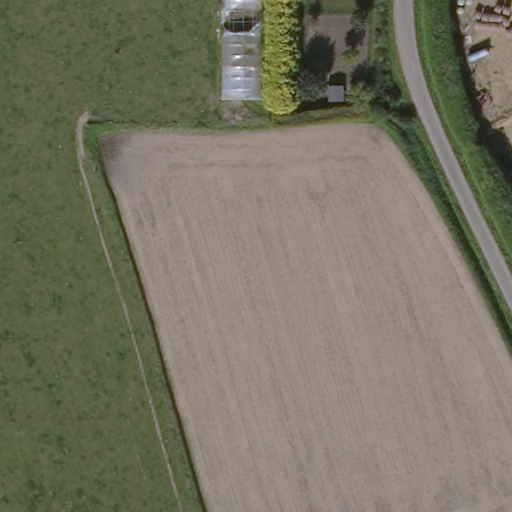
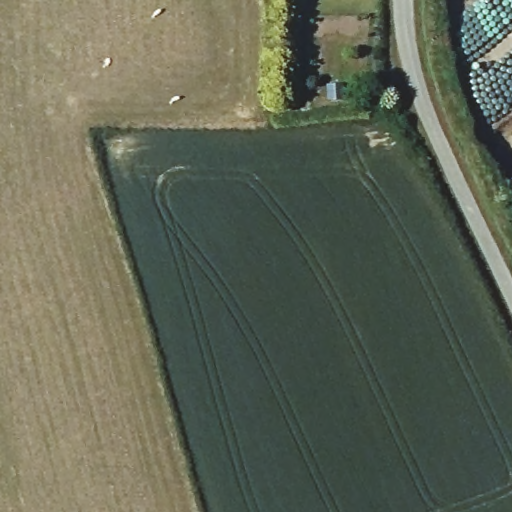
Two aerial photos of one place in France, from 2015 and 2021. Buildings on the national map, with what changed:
demolished [(259,105),(219,99),(221,0),(262,0),(259,105)]

